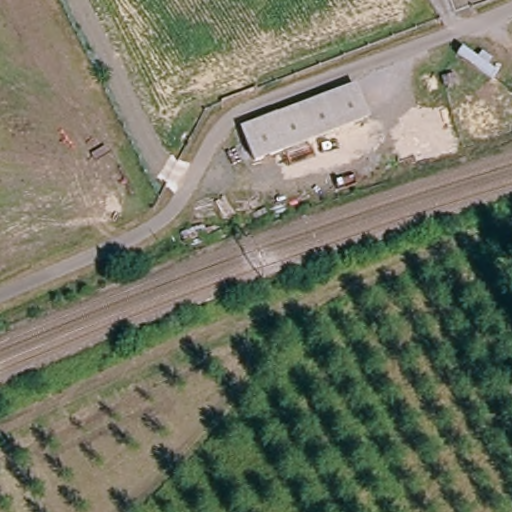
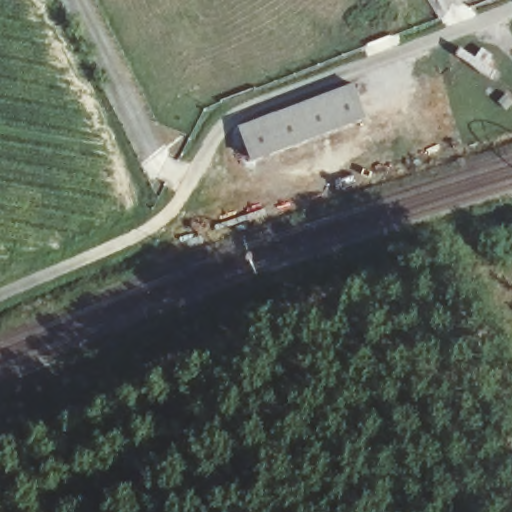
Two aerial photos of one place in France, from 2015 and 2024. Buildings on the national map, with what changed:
unchanged [(350,89),(363,121),(248,163),(236,131),(350,89)]

